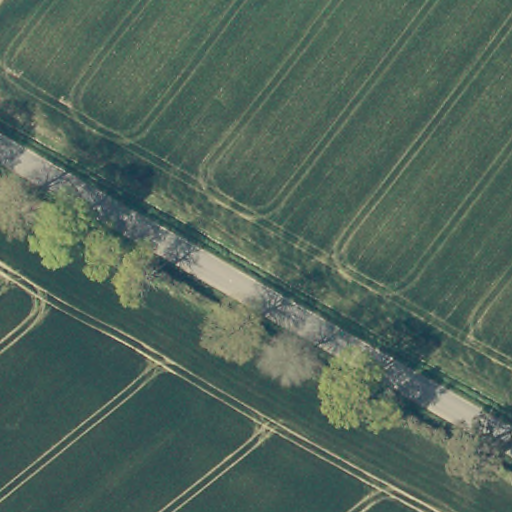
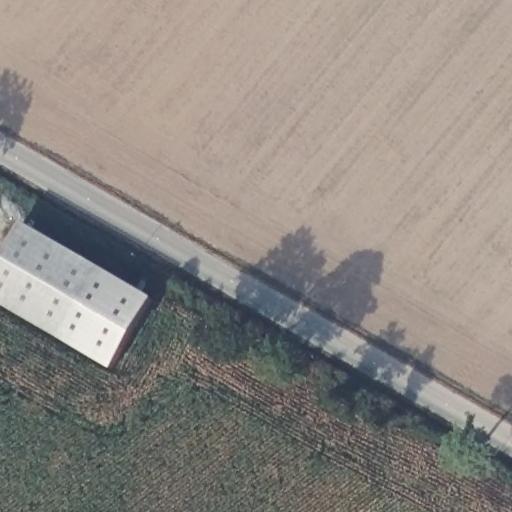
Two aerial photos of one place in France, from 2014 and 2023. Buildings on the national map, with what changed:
new [(102,268),(60,340),(0,305),(0,261),(22,222),(102,268)]
new [(154,298),(112,370),(60,340),(102,268),(154,298)]

